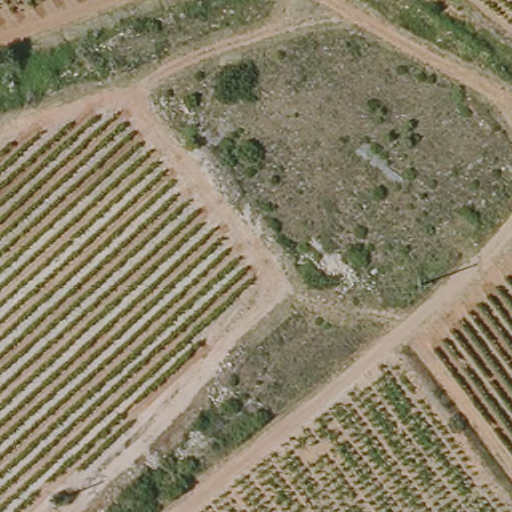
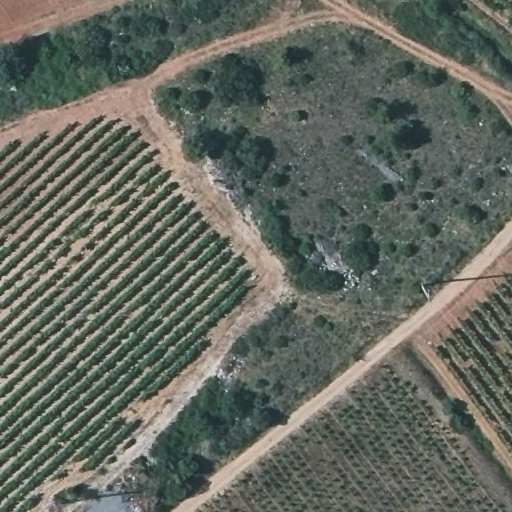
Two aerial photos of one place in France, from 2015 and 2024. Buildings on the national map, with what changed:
[]

